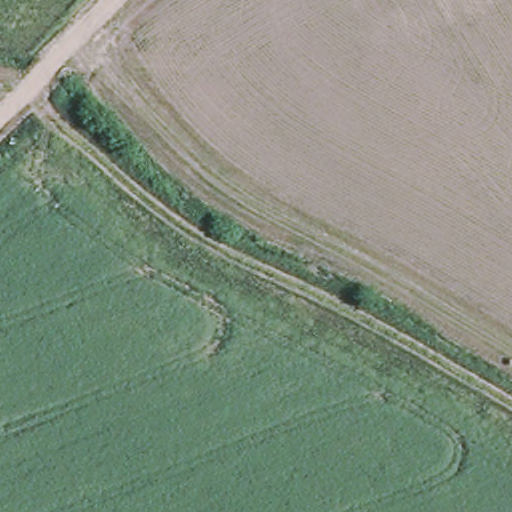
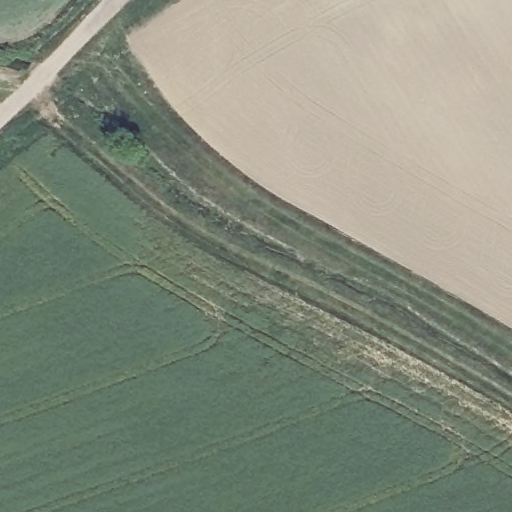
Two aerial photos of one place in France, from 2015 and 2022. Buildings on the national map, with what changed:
[]

